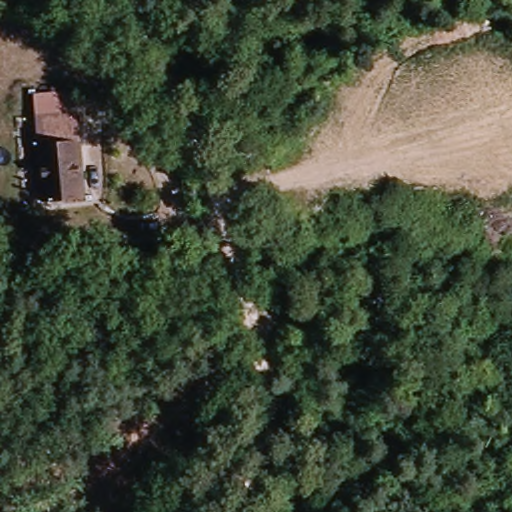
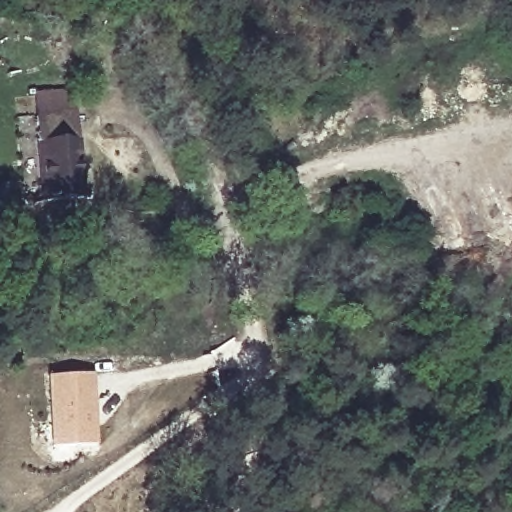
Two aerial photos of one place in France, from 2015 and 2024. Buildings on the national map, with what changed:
unchanged [(52,159),(51,113),(93,113),(93,158),(52,159)]
unchanged [(93,195),(51,194),(52,159),(93,158),(93,195)]
new [(90,375),(93,445),(50,447),(46,378),(90,375)]

